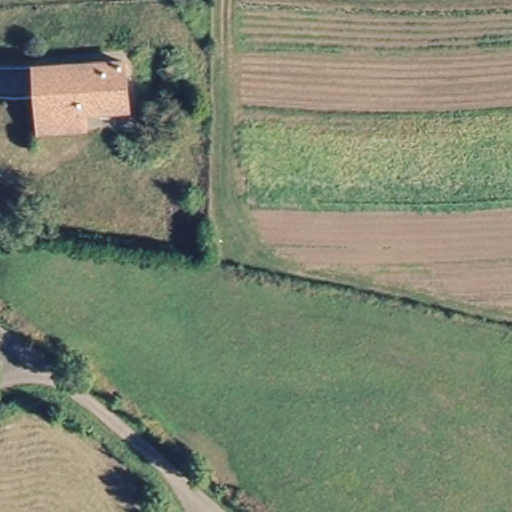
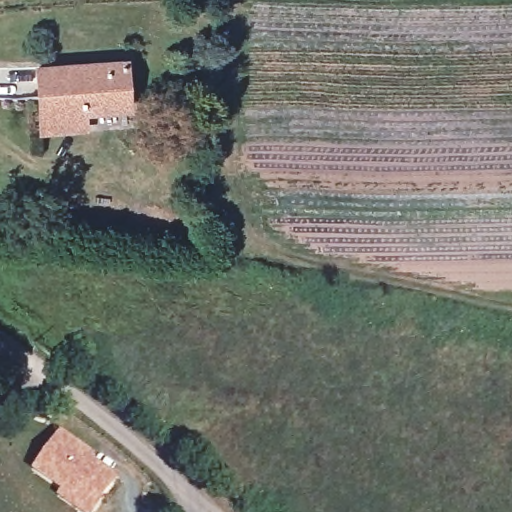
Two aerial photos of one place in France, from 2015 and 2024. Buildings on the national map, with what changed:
unchanged [(40,99),(35,68),(123,59),(129,106),(84,109),(86,128),(44,130),(40,99)]
new [(78,509),(64,498),(67,492),(39,470),(64,438),(93,459),(89,463),(116,483),(100,501),(93,512),(82,512),(78,509)]

